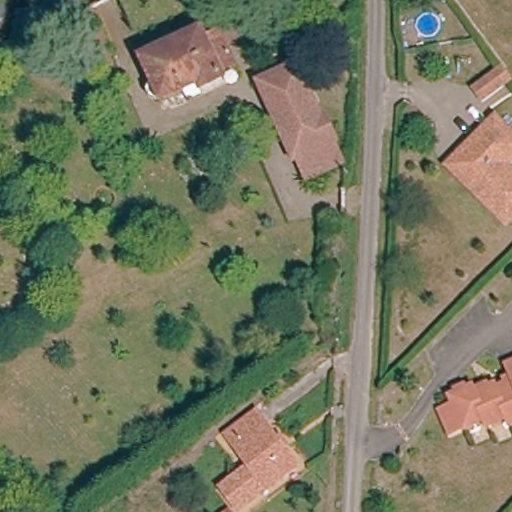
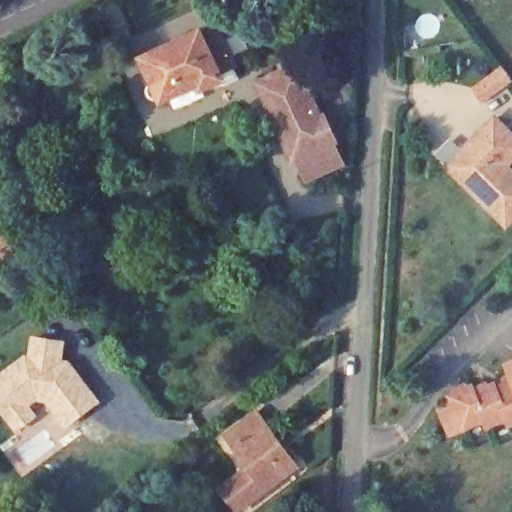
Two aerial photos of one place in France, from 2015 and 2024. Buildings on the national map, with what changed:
unchanged [(203,40),(205,47),(227,39),(240,73),(226,78),(228,85),(204,94),(202,88),(165,100),(162,101),(158,102),(155,101),(152,99),(150,96),(150,92),(150,89),(152,86),(155,84),(157,83),(149,60),(203,40)]
unchanged [(474,88),(505,65),(512,75),(512,81),(485,101),(474,88)]
unchanged [(311,66),(320,87),(312,90),(325,120),(333,116),(342,138),(334,143),(347,166),(312,179),(305,160),(297,162),(266,85),(311,66)]
unchanged [(499,119),(512,133),(512,163),(511,164),(512,166),(512,219),(507,223),(480,197),(450,168),(472,146),(499,119)]
new [(2,213),(22,254),(4,263),(0,265),(0,214),(2,213)]
new [(28,353),(31,336),(67,341),(65,360),(70,360),(102,403),(67,430),(47,402),(38,402),(32,407),(38,417),(15,434),(0,413),(0,375),(28,353)]
unchanged [(512,364),(512,368),(511,364),(512,364)]
unchanged [(512,379),(512,387),(508,380),(512,379)]
unchanged [(491,431),(486,423),(457,442),(442,419),(460,408),(457,403),(472,393),(477,400),(493,390),(497,396),(512,388),(512,424),(510,421),(491,431)]
unchanged [(264,408),(304,465),(243,508),(232,492),(262,471),(234,429),(264,408)]

